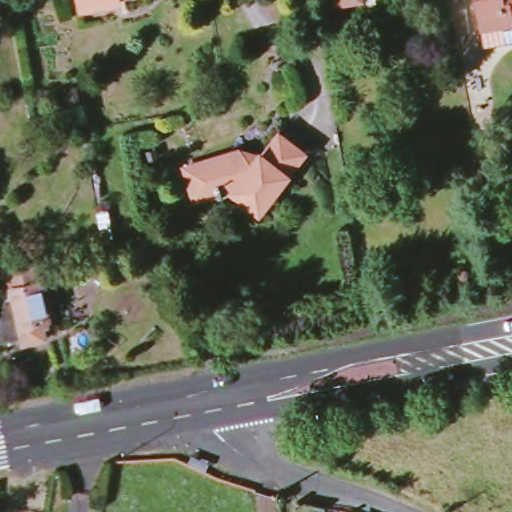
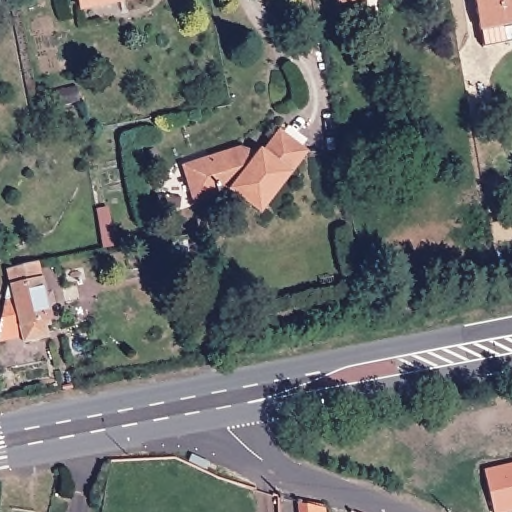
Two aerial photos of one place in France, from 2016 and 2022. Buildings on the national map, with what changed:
unchanged [(119,0),(120,3),(82,10),(80,0),(119,0)]
unchanged [(479,25),(475,0),(512,0),(512,17),(510,17),(512,26),(512,37),(490,41),(487,23),(479,25)]
unchanged [(230,185),(217,188),(218,192),(214,193),(190,200),(187,188),(180,168),(180,163),(204,157),(232,149),(235,148),(255,149),(259,151),(275,132),(295,146),(299,149),(282,170),(261,199),(256,204),(230,185)]
unchanged [(8,287),(4,273),(33,266),(40,294),(47,292),(51,312),(45,314),(47,322),(40,324),(44,341),(20,346),(19,338),(0,342),(0,307),(4,288),(8,287)]
new [(512,465),(512,510),(503,512),(494,512),(485,471),(512,465)]

